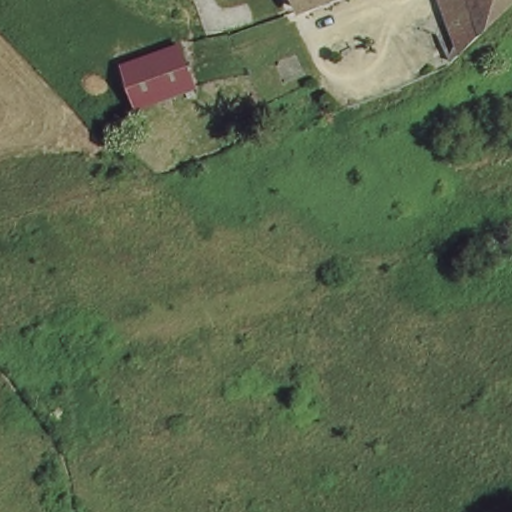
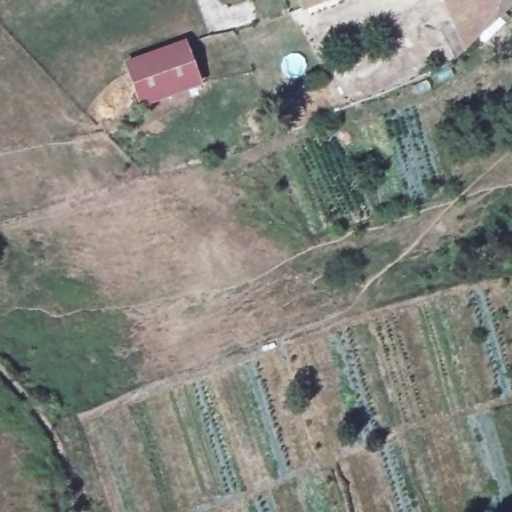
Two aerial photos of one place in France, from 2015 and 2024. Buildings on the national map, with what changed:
unchanged [(297,9),(294,0),(319,0),(297,9)]
unchanged [(512,8),(470,47),(457,24),(444,0),(445,0),(512,0),(512,8)]
unchanged [(198,85),(165,98),(140,106),(126,69),(182,47),(198,85)]

